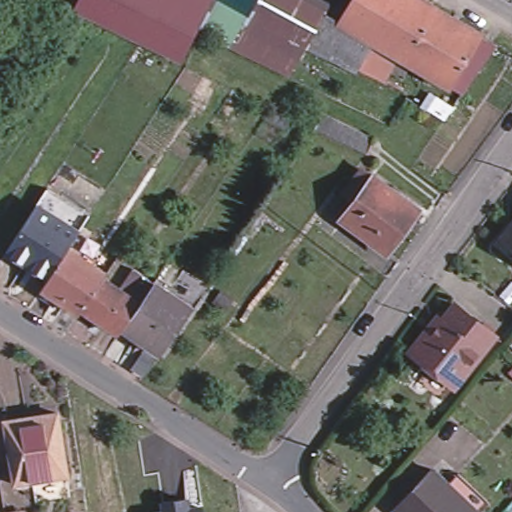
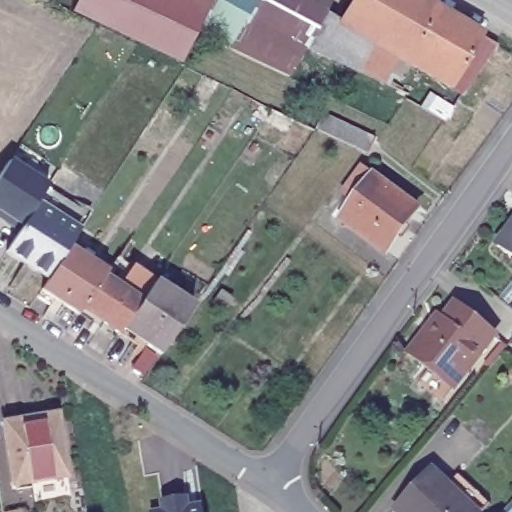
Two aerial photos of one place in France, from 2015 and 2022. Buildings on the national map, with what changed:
unchanged [(73,8),(77,0),(209,0),(182,64),(73,8)]
unchanged [(323,15),(307,45),(292,75),(228,44),(245,11),(223,0),(325,0),(329,3),(323,15)]
unchanged [(307,45),(323,15),(339,24),(353,0),(423,0),(434,6),(479,32),(448,85),(412,64),(403,79),(389,70),(383,81),(307,45)]
unchanged [(479,32),(497,41),(466,95),(448,85),(479,32)]
unchanged [(314,128),(313,127),(321,110),(373,136),(365,152),(314,128)]
new [(48,184),(35,203),(20,228),(4,218),(0,215),(0,173),(9,159),(48,184)]
unchanged [(373,177),(415,209),(385,249),(342,217),(373,177)]
unchanged [(35,203),(46,186),(88,213),(78,230),(68,245),(48,277),(5,250),(13,238),(35,203)]
unchanged [(512,216),(512,260),(491,244),(512,216)]
unchanged [(48,277),(68,245),(106,270),(103,277),(81,308),(78,312),(40,288),(48,277)]
unchanged [(160,353),(123,329),(120,334),(118,333),(81,308),(103,277),(117,287),(131,267),(153,280),(192,307),(160,353)]
unchanged [(443,369),(417,348),(432,328),(443,314),(448,318),(459,304),(497,334),(472,366),(459,382),(447,398),(431,384),(443,369)]
unchanged [(3,420),(26,416),(28,423),(30,423),(39,478),(13,482),(3,420)]
unchanged [(30,423),(55,419),(65,473),(39,478),(30,423)]
unchanged [(446,482),(456,471),(488,501),(478,511),(477,512),(397,512),(393,509),(398,504),(430,468),(446,482)]
unchanged [(202,512),(160,512),(163,512),(161,502),(183,499),(185,508),(201,506),(202,512)]

